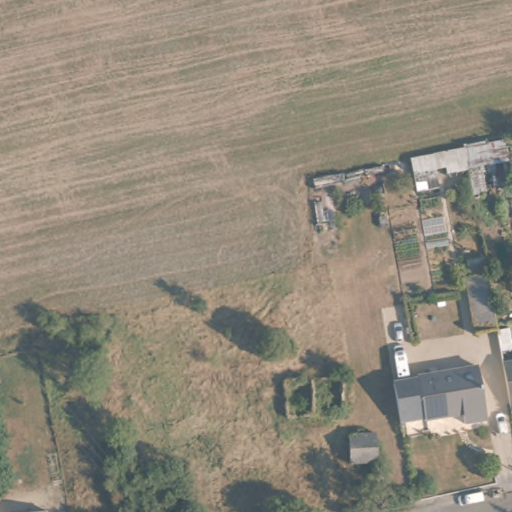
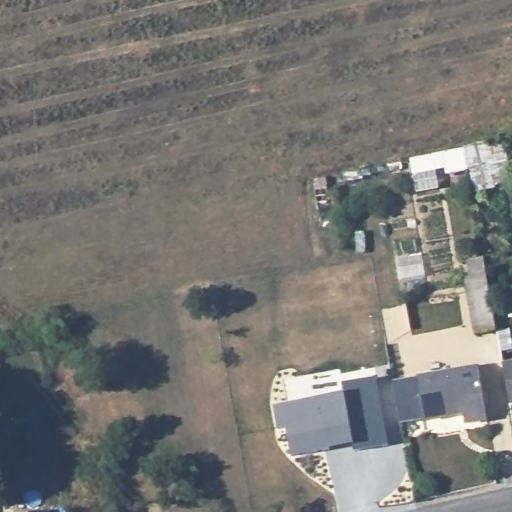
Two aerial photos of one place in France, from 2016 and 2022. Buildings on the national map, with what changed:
unchanged [(486,272),(496,328),(474,332),(464,276),(486,272)]
unchanged [(424,373),(423,371),(486,360),(496,415),(472,420),(470,407),(431,414),(431,412),(406,416),(399,377),(424,373)]
unchanged [(512,362),(512,404),(510,405),(502,363),(512,362)]
new [(353,452),(352,445),(328,450),(289,455),(284,430),(276,431),(272,406),(342,394),(340,383),(374,376),(387,446),(353,452)]
demolished [(375,435),(378,464),(352,464),(350,435),(375,435)]

